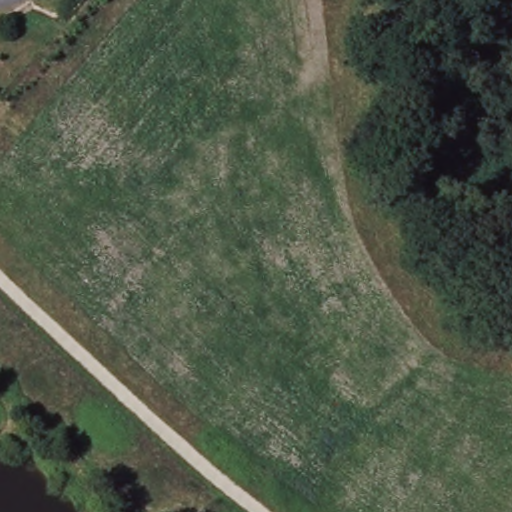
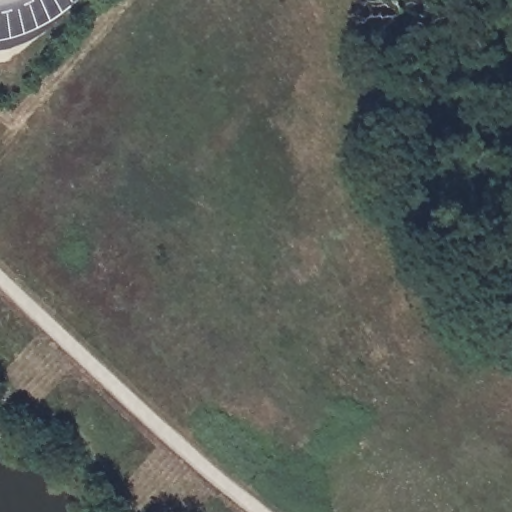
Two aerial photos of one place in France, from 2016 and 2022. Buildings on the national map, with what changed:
[]

